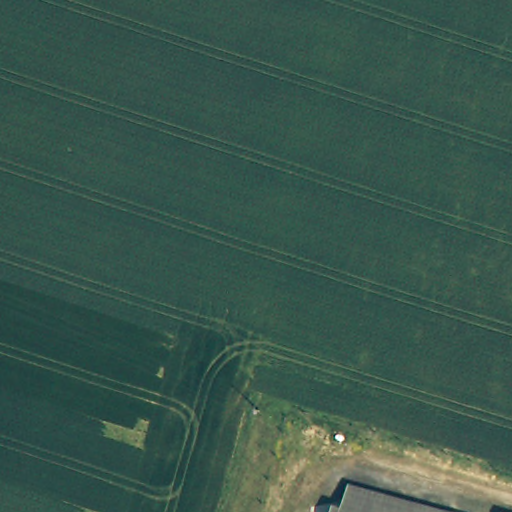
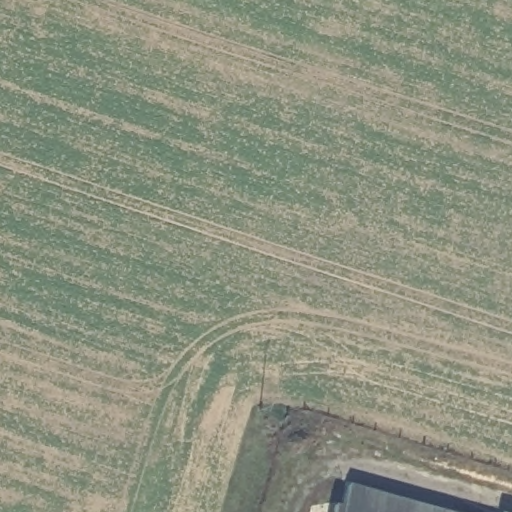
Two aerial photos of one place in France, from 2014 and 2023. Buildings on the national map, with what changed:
unchanged [(338,492),(347,494),(353,473),(485,512),(332,512),(338,492)]
unchanged [(508,509),(512,510),(512,512),(507,512),(508,509)]

